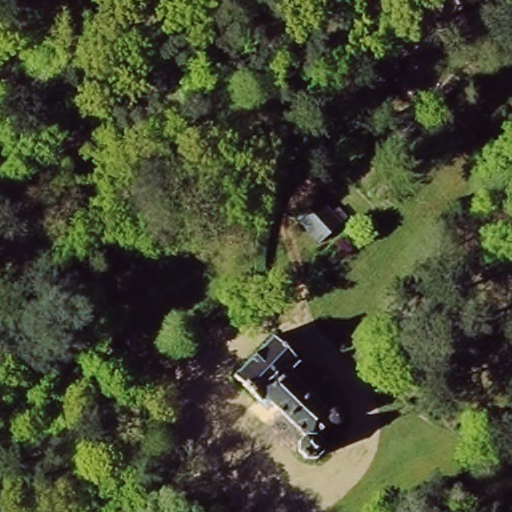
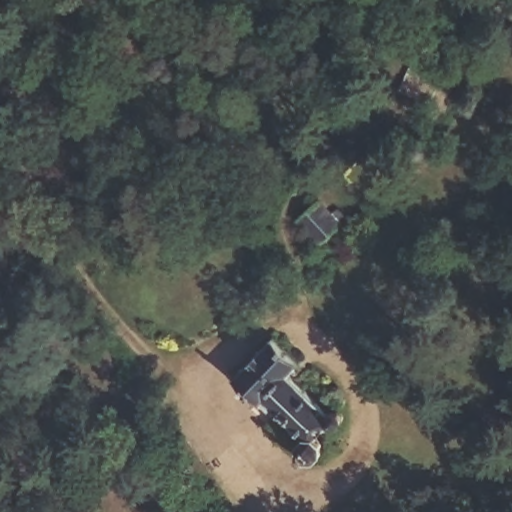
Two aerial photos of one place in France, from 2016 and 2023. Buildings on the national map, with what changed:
unchanged [(411,61),(457,83),(437,120),(397,92),(411,61)]
unchanged [(297,230),(314,209),(330,222),(313,244),(297,230)]
unchanged [(262,405),(257,410),(228,381),(269,340),(298,369),(288,379),(321,412),(323,412),(325,412),(327,412),(329,412),(331,413),(332,415),(333,417),(334,419),(335,421),(334,423),(333,425),(332,427),(330,428),(328,430),(326,430),(324,430),(322,430),(320,428),(318,427),(317,426),(304,438),(306,440),(307,441),(307,443),(308,446),(307,448),(306,450),(305,452),(302,453),(300,453),(298,453),(296,453),(294,452),(292,451),(291,449),(290,447),(290,445),(290,442),(292,440),(293,438),(295,437),(262,405)]

